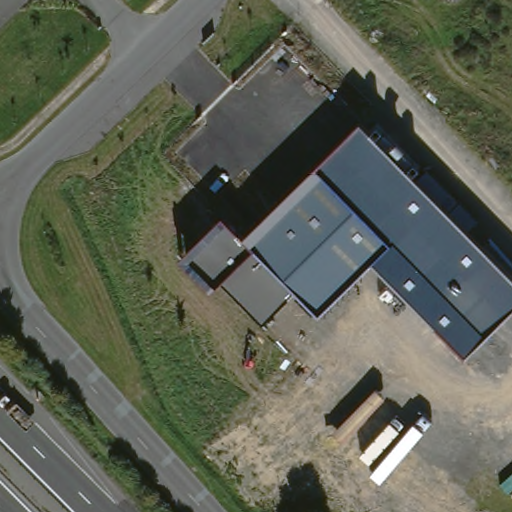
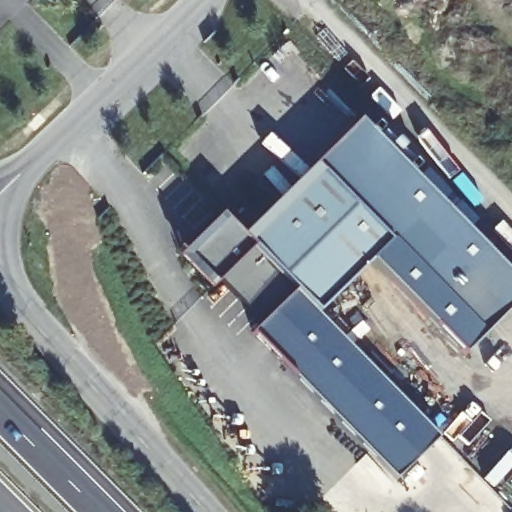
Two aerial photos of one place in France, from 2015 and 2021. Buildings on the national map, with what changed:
unchanged [(316,168),(361,122),(377,138),(382,131),(416,163),(407,169),(414,176),(425,169),(478,220),(466,229),(512,275),(512,311),(467,356),(373,262),(392,242),(321,173),(316,168)]
unchanged [(392,242),(319,316),(295,291),(263,321),(223,279),(216,284),(189,260),(229,219),(254,245),(321,173),(392,242)]
new [(295,291),(319,316),(440,437),(397,478),(251,332),(263,321),(295,291)]

